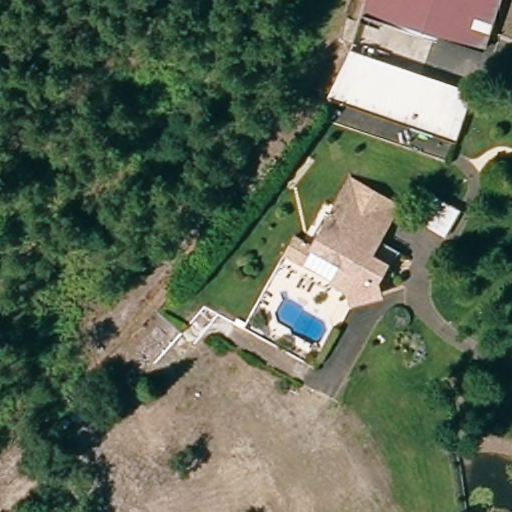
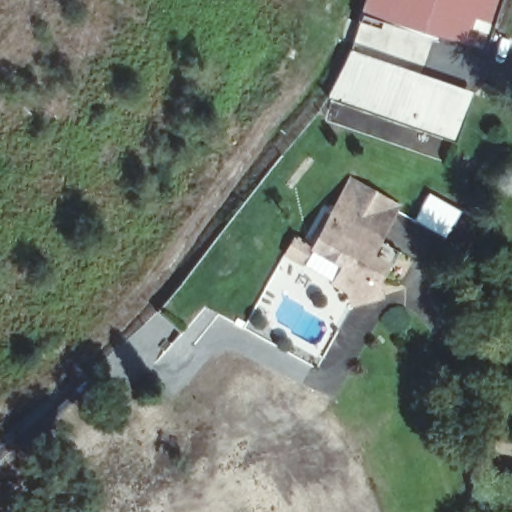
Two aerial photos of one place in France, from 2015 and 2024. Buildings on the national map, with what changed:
unchanged [(373,0),(485,0),(467,49),(392,22),(389,30),(365,20),(373,0)]
unchanged [(469,98),(454,139),(332,96),(346,55),(469,98)]
unchanged [(269,251),(281,228),(307,241),(348,164),(407,195),(386,233),(401,241),(382,277),(387,294),(348,307),(327,271),(329,256),(304,246),(294,265),(269,251)]

